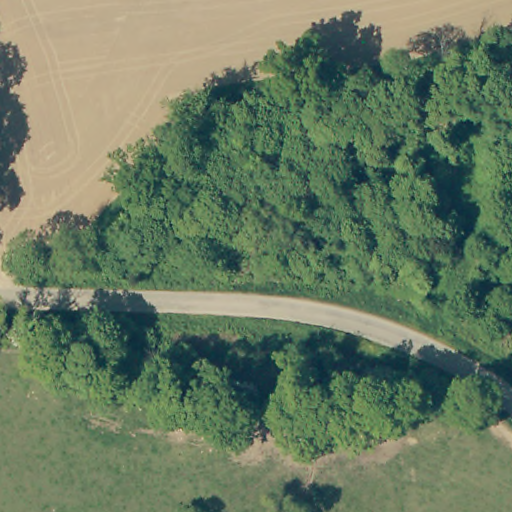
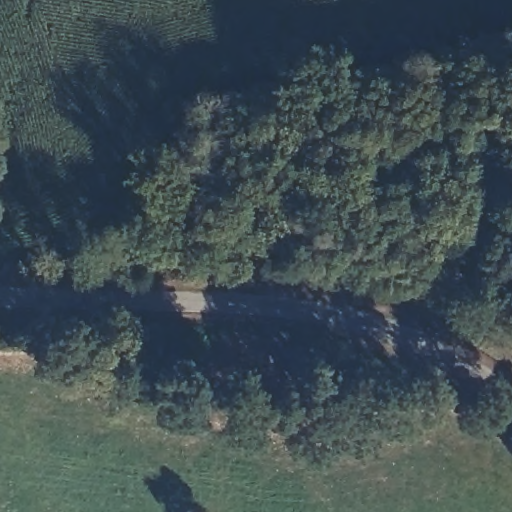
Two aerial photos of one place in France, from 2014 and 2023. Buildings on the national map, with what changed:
[]

